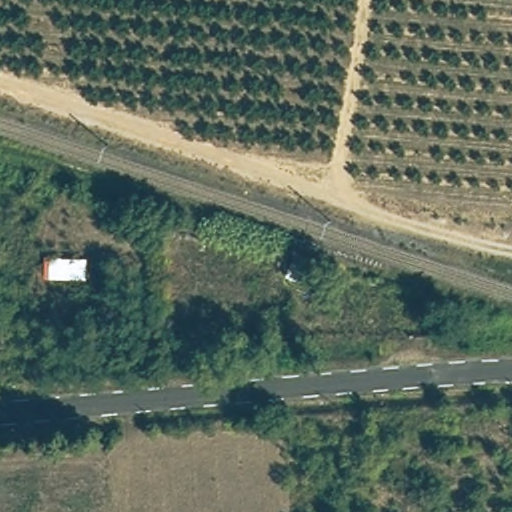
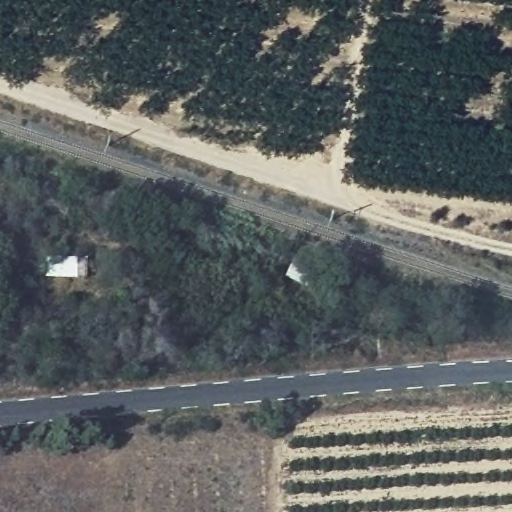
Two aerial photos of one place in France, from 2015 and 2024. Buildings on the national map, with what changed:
unchanged [(87,279),(45,278),(45,256),(88,257),(87,279)]

